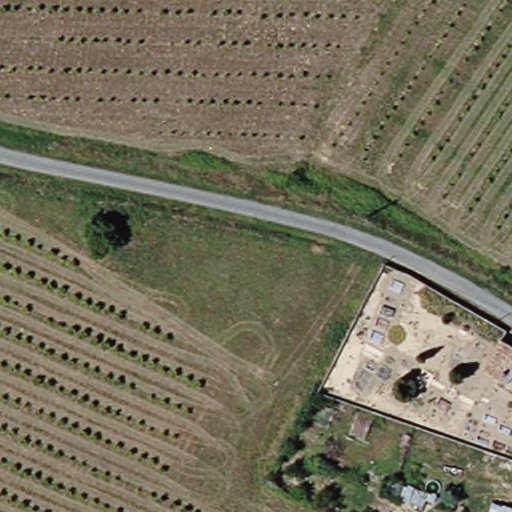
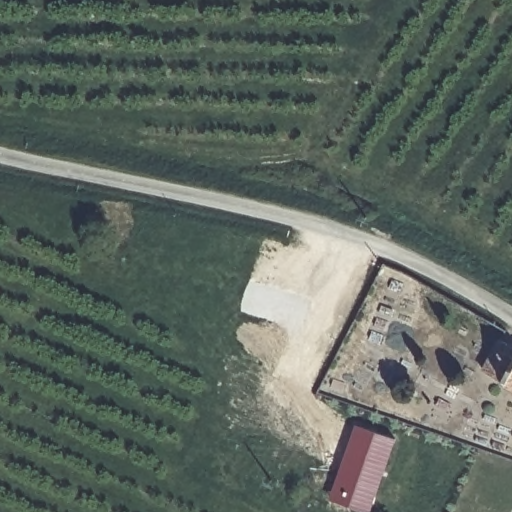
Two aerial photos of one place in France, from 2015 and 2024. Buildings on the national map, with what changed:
demolished [(512,0),(512,23),(476,0),(512,0)]
unchanged [(496,340),(512,349),(512,387),(477,367),(496,340)]
new [(370,512),(365,512),(329,500),(355,424),(397,438),(370,512)]

